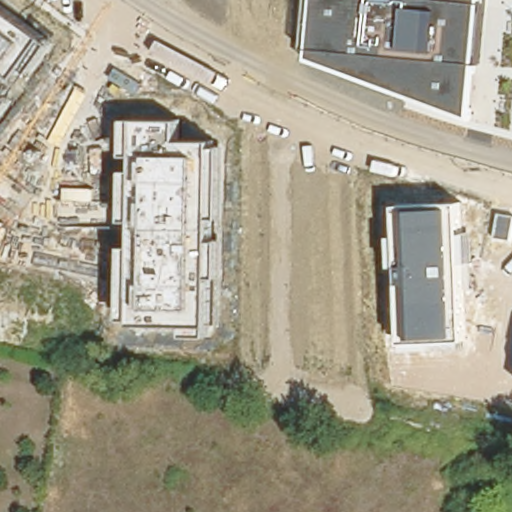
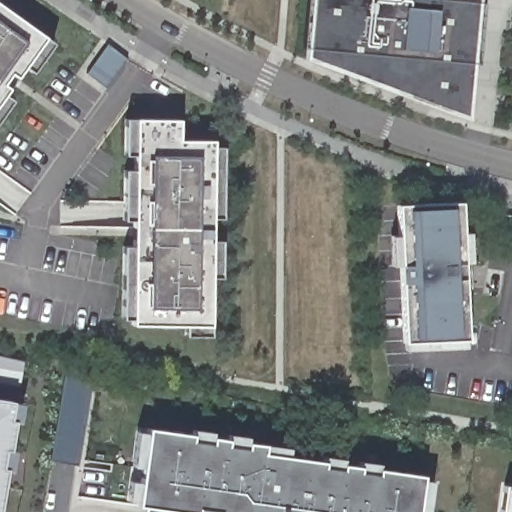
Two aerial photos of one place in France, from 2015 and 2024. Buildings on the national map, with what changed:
unchanged [(470,121),(306,57),(313,0),(479,0),(470,121)]
unchanged [(0,119),(0,5),(55,42),(0,119)]
unchanged [(179,140),(212,141),(212,147),(221,146),(220,278),(211,279),(210,337),(184,337),(184,324),(132,323),(132,318),(122,318),(123,246),(132,246),(131,221),(122,221),(124,169),(134,169),(134,156),(125,156),(125,120),(179,120),(179,140)]
unchanged [(467,339),(404,342),(396,204),(460,202),(467,339)]
new [(512,215),(512,242),(511,248),(495,246),(500,213),(512,215)]
new [(24,356),(19,388),(0,385),(0,353),(24,356)]
new [(50,462),(65,373),(92,379),(78,467),(50,462)]
new [(12,401),(21,403),(18,422),(14,421),(9,449),(14,450),(10,470),(5,469),(0,501),(0,399),(12,401)]
new [(193,512),(136,504),(148,429),(264,444),(262,452),(420,473),(415,512),(193,512)]
new [(512,486),(512,512),(500,512),(503,485),(512,486)]

